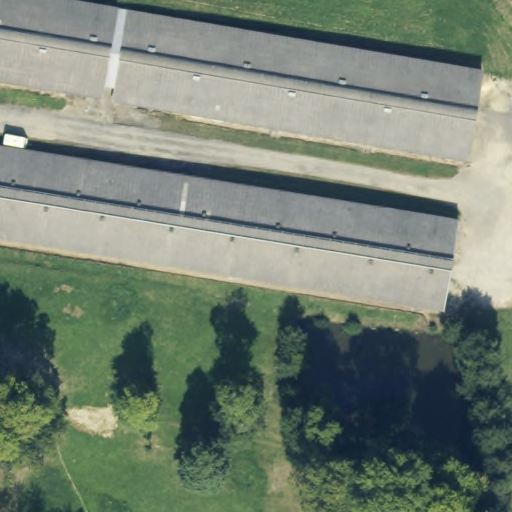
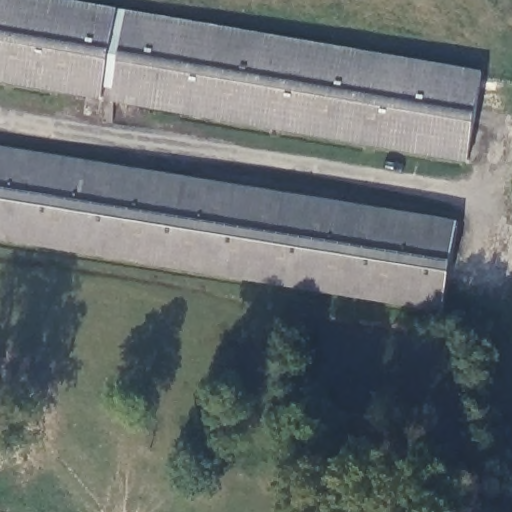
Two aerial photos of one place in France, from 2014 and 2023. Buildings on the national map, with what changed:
unchanged [(102,97),(0,80),(0,0),(53,0),(117,11),(102,97)]
unchanged [(114,101),(128,12),(220,29),(484,73),(470,160),(114,101)]
unchanged [(455,221),(441,312),(0,240),(0,146),(455,221)]

